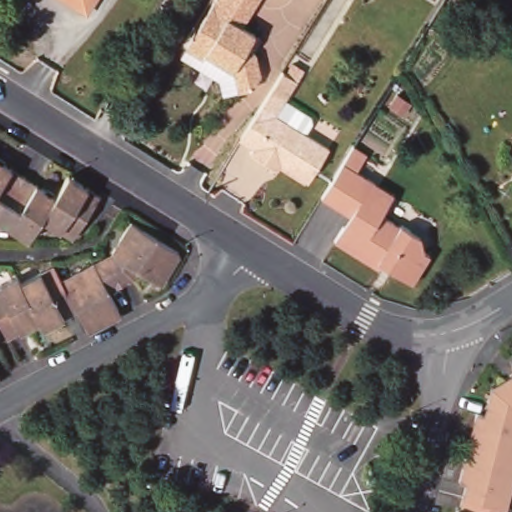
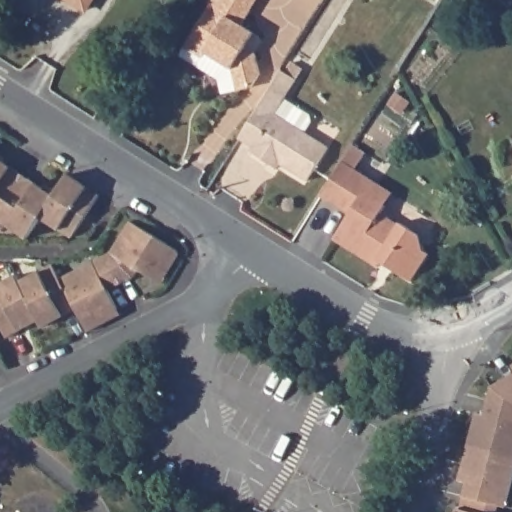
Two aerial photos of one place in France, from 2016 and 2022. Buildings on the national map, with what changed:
unchanged [(72,0),(94,0),(88,10),(72,0)]
unchanged [(257,54),(263,75),(255,90),(240,93),(234,71),(208,55),(204,60),(187,49),(218,0),(261,0),(244,27),(257,35),(262,38),(254,52),(257,54)]
unchanged [(273,165),(253,152),(257,147),(243,139),(285,71),(299,80),(278,114),(332,148),(312,181),(283,165),(281,169),(273,165)]
unchanged [(61,198),(74,178),(105,196),(77,239),(47,221),(33,240),(0,219),(0,159),(61,198)]
unchanged [(380,182),(398,194),(389,207),(385,215),(402,225),(404,224),(423,235),(426,250),(433,255),(416,283),(399,272),(398,265),(386,258),(381,267),(337,240),(349,220),(355,224),(354,215),(324,197),(346,162),(380,182)]
unchanged [(107,325),(92,333),(81,310),(47,327),(44,321),(9,338),(0,320),(0,287),(20,277),(24,284),(56,266),(64,281),(115,255),(136,224),(184,252),(185,257),(178,267),(167,286),(160,282),(142,272),(138,277),(113,290),(122,308),(126,315),(107,325)]

